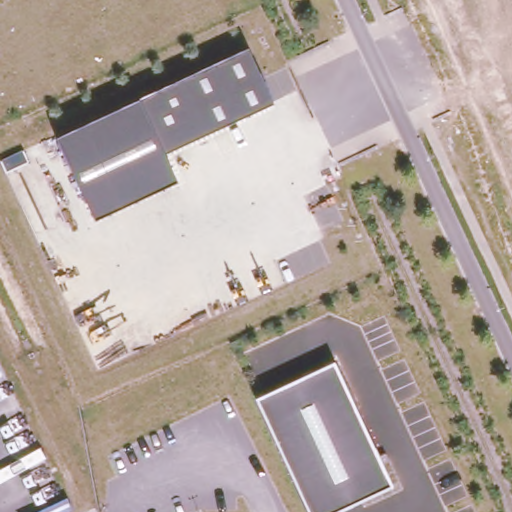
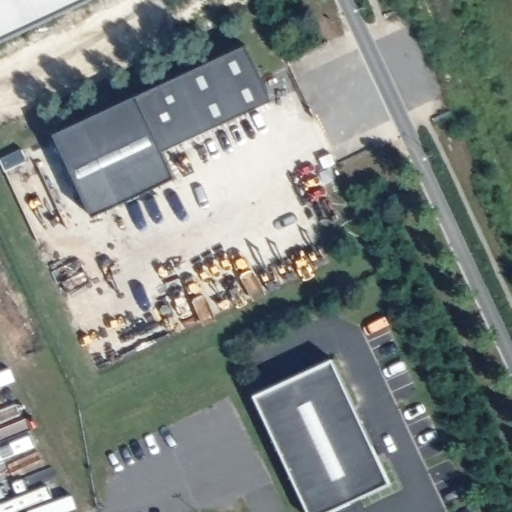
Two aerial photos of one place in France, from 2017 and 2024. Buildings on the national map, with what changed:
new [(58,15),(0,42),(0,0),(51,0),(58,15)]
new [(58,15),(51,0),(90,0),(58,15)]
unchanged [(252,49),(278,93),(165,141),(176,171),(90,201),(56,127),(252,49)]
unchanged [(333,363),(389,484),(328,512),(310,512),(257,398),(333,363)]

